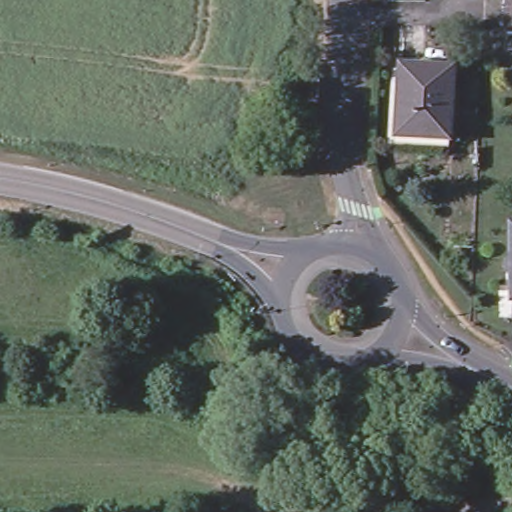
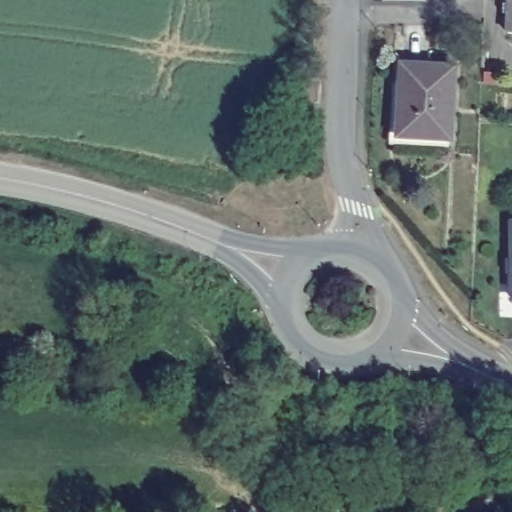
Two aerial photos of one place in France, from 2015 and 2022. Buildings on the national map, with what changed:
unchanged [(509,36),(510,0),(512,0),(512,36),(509,36)]
unchanged [(400,69),(450,70),(449,140),(398,139),(400,69)]
unchanged [(300,82),(324,84),(325,106),(300,106),(300,82)]

